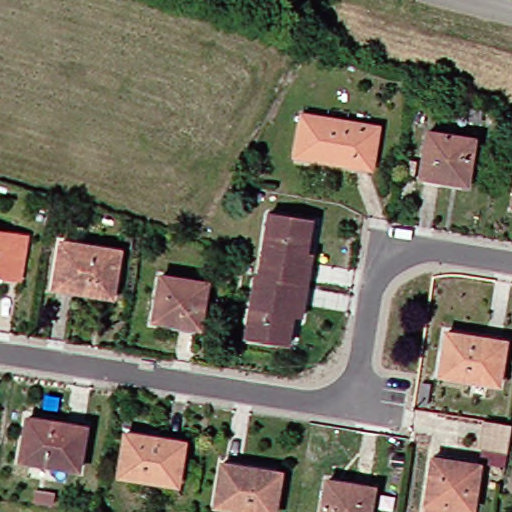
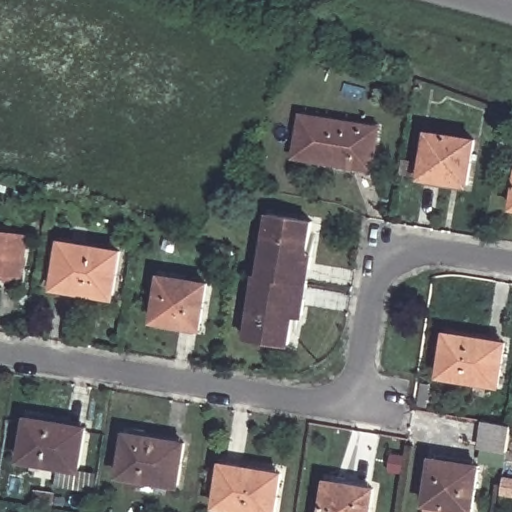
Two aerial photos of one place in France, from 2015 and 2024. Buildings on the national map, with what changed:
unchanged [(373,168),(296,156),(303,115),(379,127),(373,168)]
unchanged [(468,183),(423,175),(429,132),(474,139),(468,183)]
unchanged [(270,215),(311,221),(305,255),(310,256),(305,285),(260,277),(270,215)]
unchanged [(0,273),(0,233),(28,237),(21,277),(0,273)]
unchanged [(133,254),(125,252),(126,241),(135,242),(133,254)]
unchanged [(114,300),(55,291),(63,246),(121,256),(114,300)]
unchanged [(300,315),(294,314),(289,343),(248,336),(258,277),(260,277),(305,285),(302,307),(300,315)]
unchanged [(205,331),(161,324),(168,280),(212,287),(205,331)]
unchanged [(506,342),(499,384),(442,374),(448,332),(506,342)]
unchanged [(84,469),(27,459),(34,417),(90,427),(84,469)]
unchanged [(509,448),(481,444),(486,418),(512,422),(512,428),(509,448)]
unchanged [(184,442),(178,484),(121,475),(128,433),(184,442)]
unchanged [(479,466),(474,509),(473,512),(425,512),(434,460),(479,466)]
unchanged [(260,512),(217,505),(223,464),(282,474),(275,512),(260,512)]
unchanged [(324,512),(329,481),(374,489),(370,512),(324,512)]
unchanged [(59,503),(41,501),(43,489),(60,491),(59,503)]

